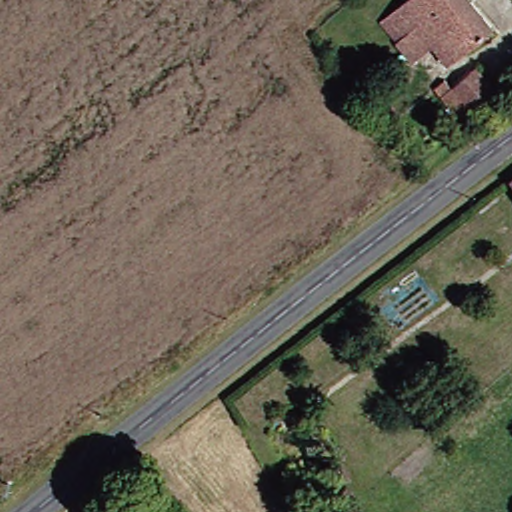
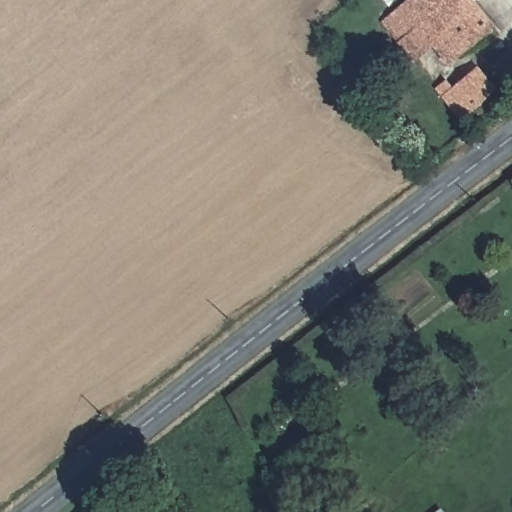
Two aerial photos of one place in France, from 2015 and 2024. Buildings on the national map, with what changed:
unchanged [(410,26),(393,42),(373,20),(398,0),(463,0),(485,28),(445,61),(410,26)]
unchanged [(474,120),(446,86),(455,78),(463,86),(487,68),(505,92),(474,120)]
unchanged [(506,178),(512,173),(512,184),(506,178)]

